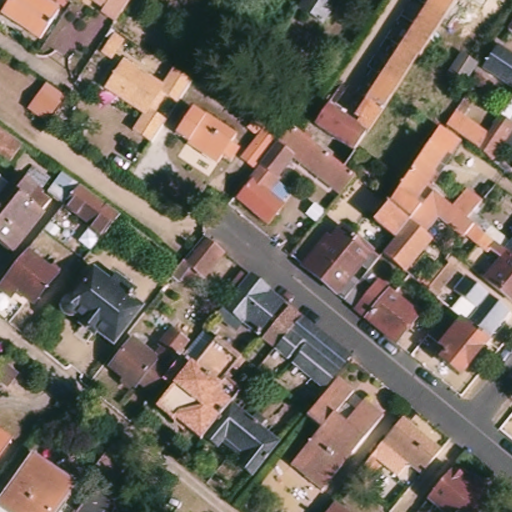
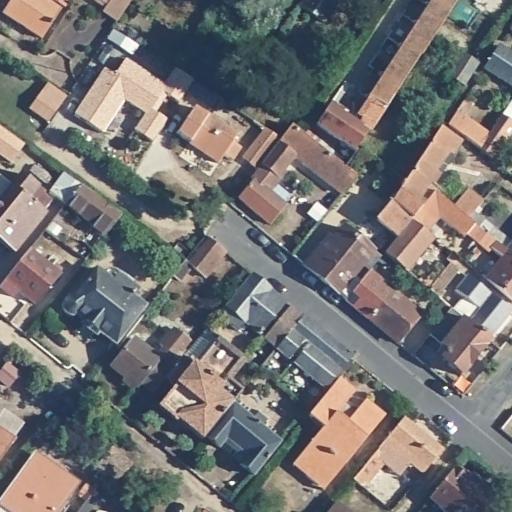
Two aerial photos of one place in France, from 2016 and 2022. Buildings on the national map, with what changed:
unchanged [(11,0),(40,0),(59,12),(41,40),(1,14),(11,0)]
unchanged [(100,12),(105,5),(97,0),(132,0),(116,23),(100,12)]
unchanged [(306,0),(340,0),(331,12),(336,17),(332,22),(303,3),(306,0)]
unchanged [(435,0),(456,0),(413,65),(367,136),(365,135),(353,153),(314,125),(326,109),(349,124),(352,119),(358,117),(368,102),(435,0)]
unchanged [(301,12),(320,25),(312,37),(293,24),(301,12)]
unchanged [(512,35),(507,32),(512,25),(512,35)]
unchanged [(512,54),(512,83),(488,69),(502,48),(512,54)]
unchanged [(466,56),(480,65),(466,87),(451,78),(466,56)]
unchanged [(125,60),(165,87),(175,71),(194,82),(179,104),(166,96),(155,112),(167,121),(153,143),(135,130),(145,115),(122,100),(125,96),(109,86),(125,60)]
new [(102,133),(72,114),(102,69),(115,76),(109,86),(125,96),(122,100),(102,133)]
unchanged [(512,130),(490,162),(477,151),(465,141),(445,128),(463,100),(470,105),(462,117),(487,136),(500,117),(512,125),(512,130)]
unchanged [(189,144),(175,136),(191,111),(205,119),(206,117),(235,135),(230,143),(239,149),(230,163),(221,157),(217,165),(202,156),(187,147),(189,144)]
unchanged [(301,136),(305,139),(308,134),(340,160),(337,164),(344,169),(352,177),(354,178),(344,191),(340,196),(293,159),(277,178),(280,181),(270,196),(283,208),(268,226),(236,201),(250,183),(247,180),(249,179),(255,170),(241,159),(258,137),(248,128),(252,123),(278,140),(290,127),(301,136)]
unchanged [(22,146),(9,164),(0,158),(0,130),(22,146)]
unchanged [(500,260),(477,241),(467,233),(462,239),(436,219),(423,234),(428,239),(401,273),(381,257),(395,240),(372,223),(388,205),(439,131),(458,143),(449,158),(445,156),(425,187),(432,194),(450,208),(465,190),(481,202),(472,214),(510,244),(512,241),(512,302),(485,279),(500,260)]
unchanged [(102,240),(90,231),(92,229),(63,207),(47,195),(62,175),(80,187),(120,217),(102,240)]
unchanged [(20,176),(43,194),(34,207),(42,215),(12,254),(0,245),(0,202),(20,176)]
unchanged [(343,302),(307,272),(306,272),(302,267),(325,238),(331,242),(341,230),(352,238),(355,234),(362,240),(360,243),(378,259),(368,272),(360,266),(347,282),(354,289),(360,282),(370,289),(376,283),(389,293),(393,296),(417,317),(395,344),(366,321),(353,310),(343,302)]
unchanged [(208,237),(228,254),(207,279),(195,270),(185,283),(176,278),(188,262),(208,237)]
unchanged [(38,305),(37,306),(21,293),(15,300),(1,290),(31,253),(54,271),(57,268),(64,273),(38,305)]
unchanged [(65,304),(73,298),(77,299),(99,273),(115,284),(120,277),(139,292),(134,299),(145,309),(116,345),(100,333),(98,336),(85,325),(85,322),(76,316),(75,319),(65,313),(65,304)]
unchanged [(262,336),(248,324),(241,332),(220,316),(241,291),(235,286),(245,274),(252,278),(254,276),(288,304),(262,336)]
unchanged [(410,285),(416,278),(430,289),(441,298),(436,306),(410,285)]
unchanged [(451,318),(462,305),(452,297),(463,281),(464,281),(499,310),(509,318),(486,345),(451,318)]
unchanged [(297,367),(296,363),(306,354),(300,349),(291,361),(285,356),(279,361),(275,357),(279,351),(266,341),(293,308),(305,318),(354,358),(328,390),(303,371),(298,377),(293,372),(297,367)]
unchanged [(486,345),(487,346),(459,382),(440,366),(445,358),(426,342),(442,323),(435,317),(440,309),(448,315),(451,318),(486,345)]
unchanged [(117,384),(121,379),(109,368),(131,341),(154,358),(161,350),(158,347),(173,328),(179,329),(187,335),(188,341),(182,348),(186,352),(182,357),(182,358),(163,381),(160,385),(151,396),(139,386),(135,390),(133,388),(129,393),(117,384)]
unchanged [(211,428),(200,441),(158,407),(172,388),(163,381),(182,358),(182,357),(186,352),(200,336),(205,330),(205,329),(211,335),(220,342),(205,360),(210,366),(214,369),(219,372),(224,374),(227,375),(230,374),(237,365),(237,360),(237,356),(241,360),(244,362),(227,382),(240,392),(211,428)]
unchanged [(16,376),(6,389),(0,384),(0,371),(4,366),(16,376)]
unchanged [(357,394),(349,404),(358,412),(367,402),(387,419),(327,492),(295,466),(326,429),(311,417),(341,381),(357,394)]
unchanged [(238,466),(245,458),(225,442),(218,449),(205,439),(232,406),(250,421),(255,415),(263,423),(259,428),(278,444),(251,477),(238,466)]
unchanged [(405,420),(445,453),(429,471),(425,476),(386,444),(390,440),(405,420)]
unchanged [(10,443),(0,457),(0,436),(10,443)]
unchanged [(91,470),(116,439),(136,454),(110,486),(101,479),(91,470)]
unchanged [(376,456),(382,462),(362,487),(355,481),(376,456)]
unchanged [(77,486),(59,512),(0,512),(0,510),(1,508),(37,457),(77,486)]
unchanged [(436,494),(455,470),(470,481),(475,476),(500,497),(488,512),(444,512),(440,509),(430,501),(436,494)]
unchanged [(347,512),(335,512),(340,506),(347,512)]

